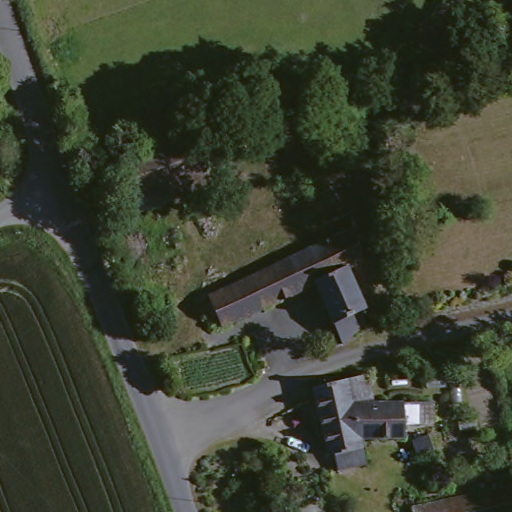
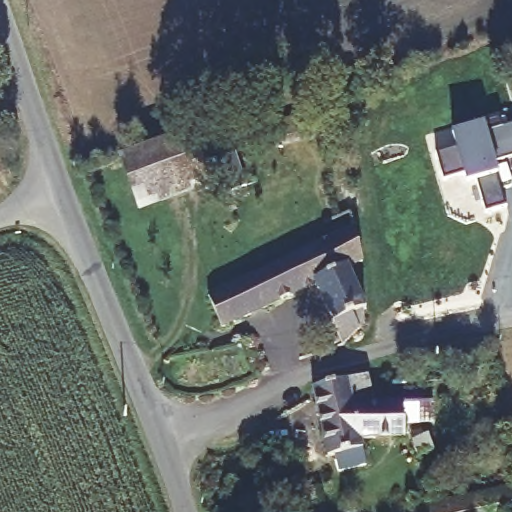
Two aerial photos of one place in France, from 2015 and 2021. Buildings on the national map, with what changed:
unchanged [(229,140),(298,117),(304,135),(236,158),(229,140)]
new [(477,180),(466,184),(463,172),(443,177),(439,154),(456,149),(452,132),(485,123),(499,119),(502,127),(512,125),(512,156),(494,162),(497,174),(505,206),(486,212),(477,180)]
unchanged [(113,159),(184,133),(205,182),(134,210),(113,159)]
unchanged [(317,282),(300,289),(286,257),(325,241),(350,230),(360,263),(346,270),(360,305),(357,306),(363,325),(339,337),(317,282)]
unchanged [(220,325),(209,301),(207,296),(227,287),(286,257),(300,289),(220,325)]
unchanged [(331,457),(326,458),(326,456),(312,385),(363,376),(369,402),(432,402),(432,420),(430,420),(404,420),(404,437),(357,441),(359,450),(364,469),(336,476),(331,457)]
unchanged [(429,439),(434,457),(414,462),(409,443),(429,439)]
unchanged [(416,512),(415,509),(512,486),(512,511),(507,512),(416,512)]

